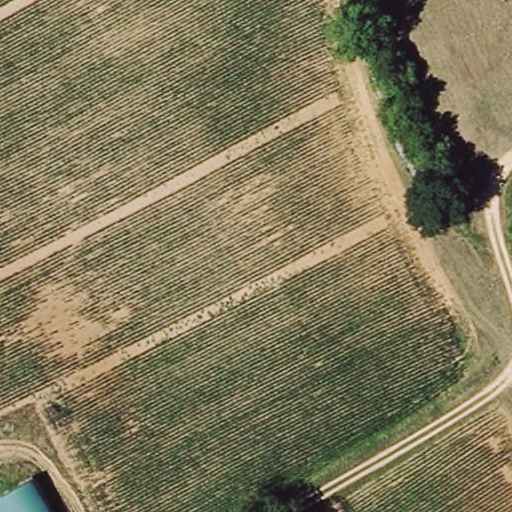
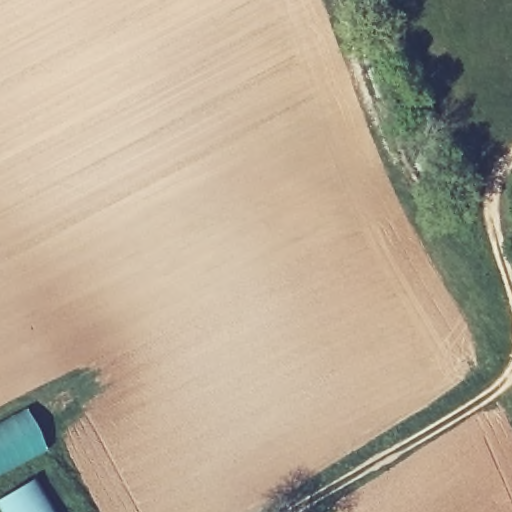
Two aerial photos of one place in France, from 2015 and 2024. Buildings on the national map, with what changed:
new [(0,422),(26,409),(46,451),(0,474),(0,422)]
unchanged [(52,512),(0,512),(0,502),(34,481),(52,512)]

